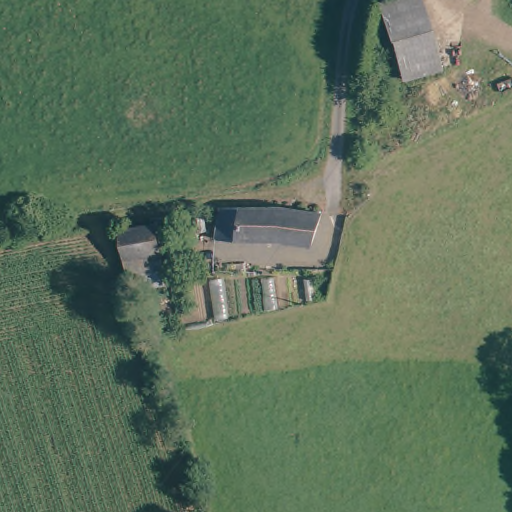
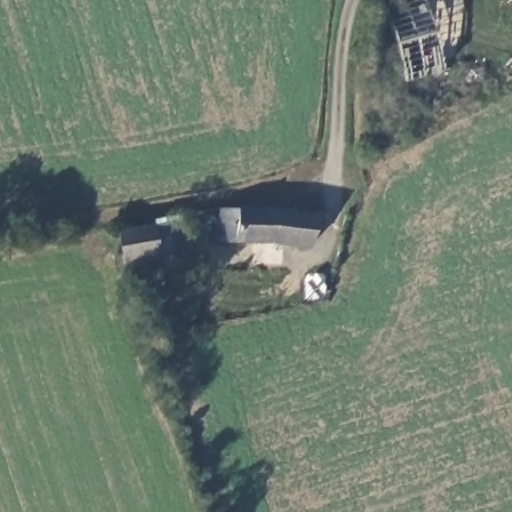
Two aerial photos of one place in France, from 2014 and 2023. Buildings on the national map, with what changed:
unchanged [(391,0),(428,0),(444,67),(404,76),(386,1),(391,0)]
unchanged [(283,204),(316,206),(312,241),(220,247),(217,212),(251,205),(283,204)]
unchanged [(155,235),(156,261),(128,263),(124,235),(155,235)]

